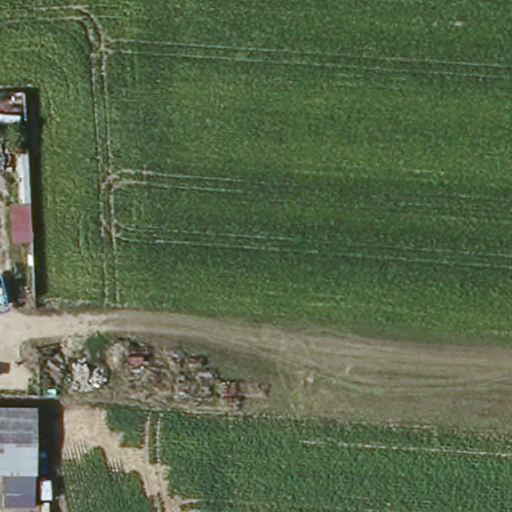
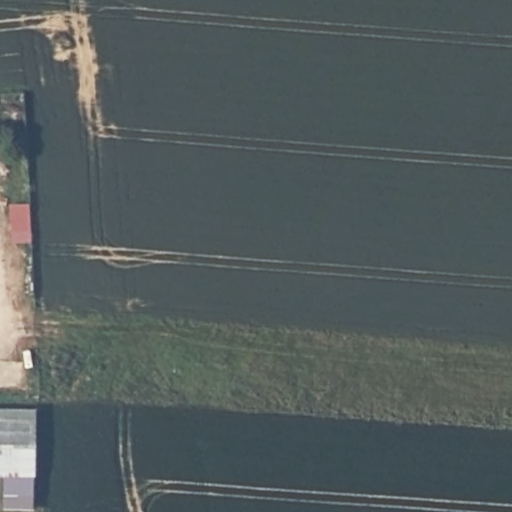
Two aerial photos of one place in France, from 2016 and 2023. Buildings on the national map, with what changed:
unchanged [(43,398),(42,501),(7,500),(7,467),(0,467),(0,397),(43,398)]

